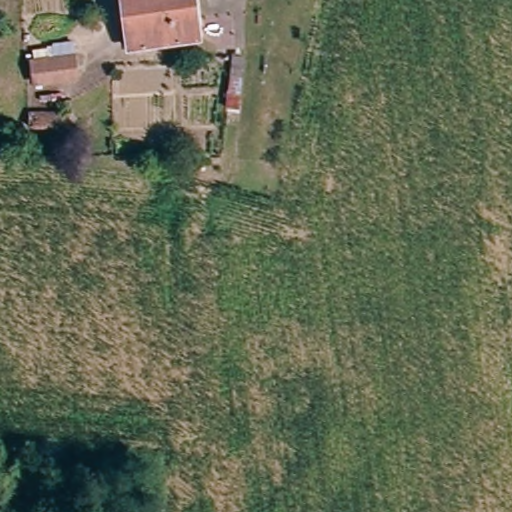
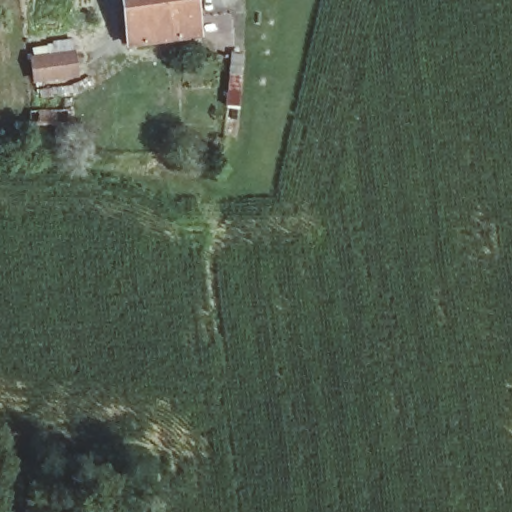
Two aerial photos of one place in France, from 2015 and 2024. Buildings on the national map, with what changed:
unchanged [(155,31),(159,32),(162,41),(134,45),(126,0),(151,0),(155,31)]
unchanged [(198,36),(162,41),(159,32),(155,31),(151,0),(191,0),(198,36)]
unchanged [(36,79),(34,61),(69,54),(73,71),(73,76),(36,79)]

